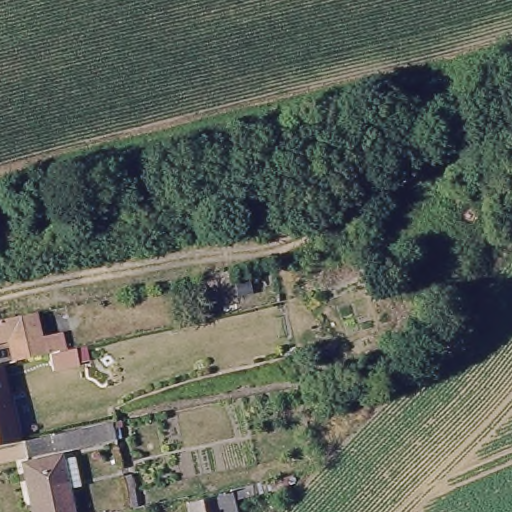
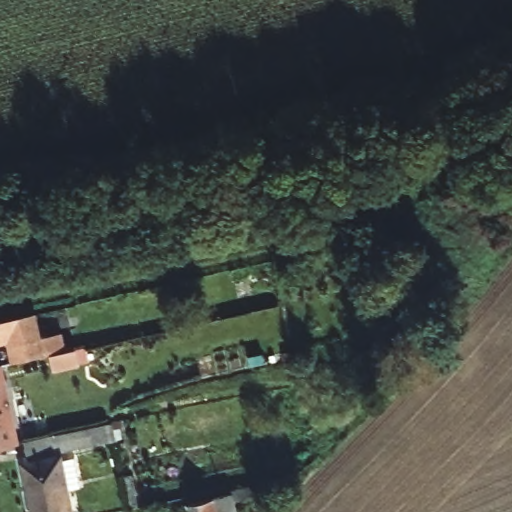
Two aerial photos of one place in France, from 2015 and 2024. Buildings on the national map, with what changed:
unchanged [(68,350),(78,349),(88,347),(90,364),(80,365),(53,371),(50,352),(13,360),(7,337),(0,339),(0,320),(30,313),(36,337),(47,335),(65,335),(68,350)]
unchanged [(16,445),(0,448),(0,368),(16,445)]
unchanged [(112,425),(115,440),(27,457),(25,443),(112,425)]
unchanged [(63,468),(75,466),(81,495),(69,498),(72,512),(32,512),(22,463),(60,455),(63,468)]
unchanged [(130,466),(137,507),(129,510),(120,467),(130,466)]
unchanged [(227,495),(227,493),(247,490),(249,499),(230,502),(231,512),(184,512),(182,503),(227,495)]

